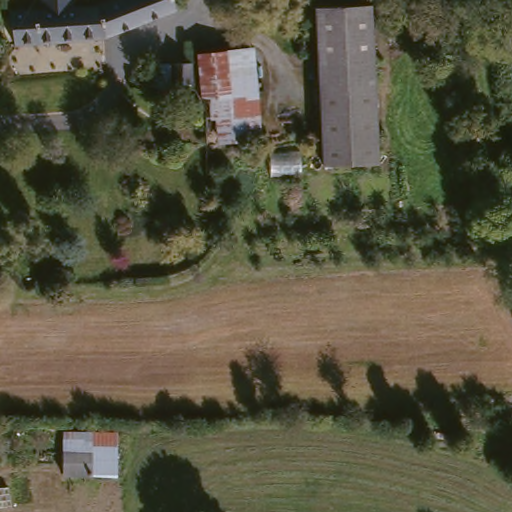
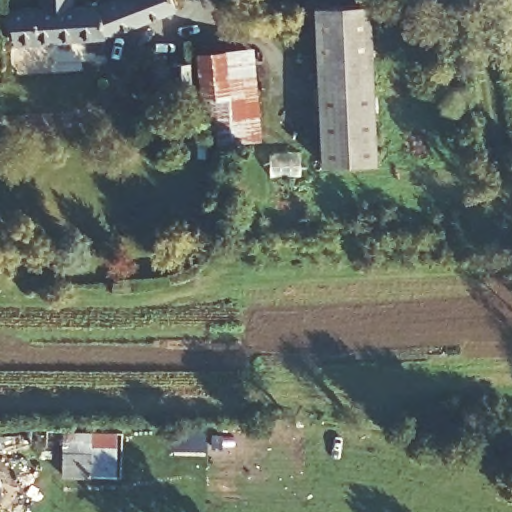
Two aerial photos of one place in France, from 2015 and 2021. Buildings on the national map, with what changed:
unchanged [(16,7),(104,1),(105,0),(181,0),(184,8),(107,36),(18,44),(16,7)]
unchanged [(73,3),(37,5),(37,0),(73,0),(73,3)]
unchanged [(328,159),(320,3),(377,2),(384,158),(328,159)]
unchanged [(207,102),(203,51),(259,45),(264,97),(207,102)]
unchanged [(151,89),(151,60),(195,59),(194,88),(151,89)]
unchanged [(69,492),(68,428),(123,428),(123,474),(103,474),(103,492),(69,492)]

